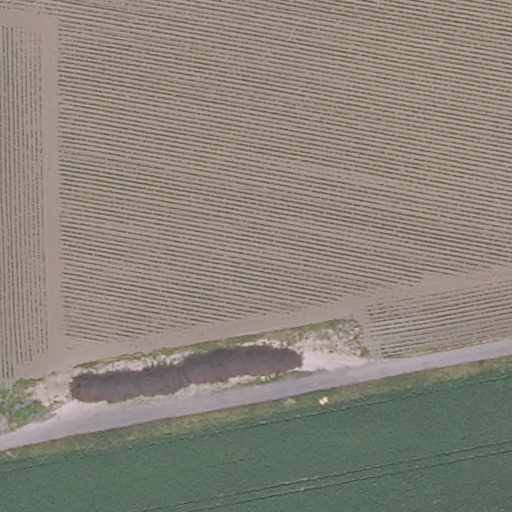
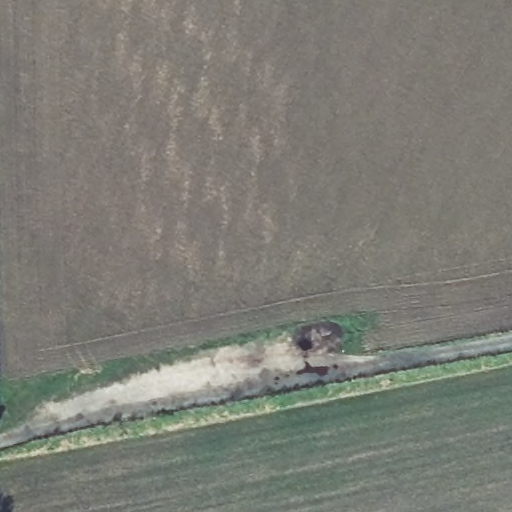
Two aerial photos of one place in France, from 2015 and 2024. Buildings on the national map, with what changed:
[]

